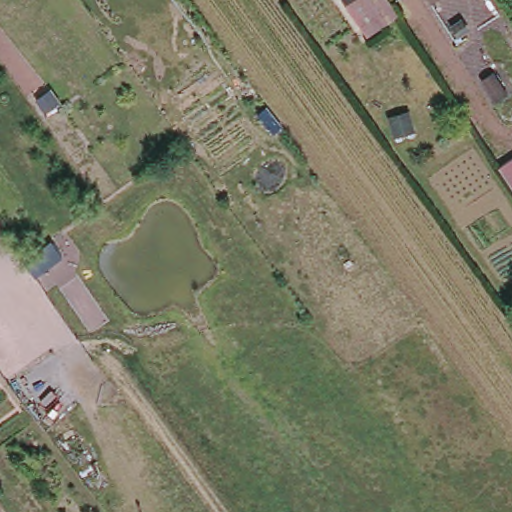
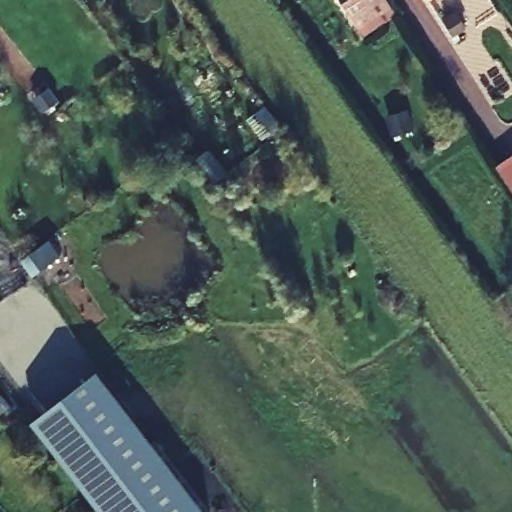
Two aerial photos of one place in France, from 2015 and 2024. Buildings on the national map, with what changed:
unchanged [(389,0),(392,5),(397,12),(365,33),(362,26),(343,0),(389,0)]
unchanged [(492,68),(507,91),(494,99),(479,76),(492,68)]
unchanged [(512,185),(499,165),(512,156),(512,186),(512,185)]
new [(110,377),(213,512),(105,512),(42,430),(110,377)]

